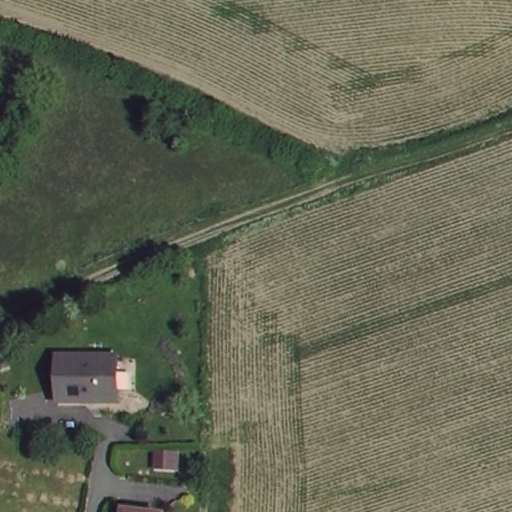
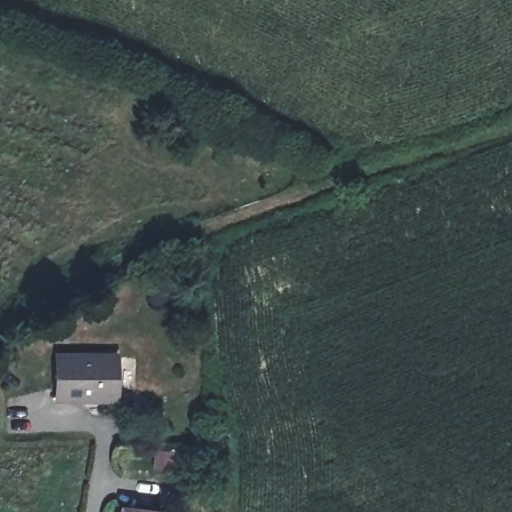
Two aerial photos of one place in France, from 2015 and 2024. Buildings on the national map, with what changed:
unchanged [(115,400),(99,400),(95,396),(86,395),(86,400),(55,399),(56,355),(116,355),(115,400)]
unchanged [(151,512),(130,512),(130,509),(151,512)]

